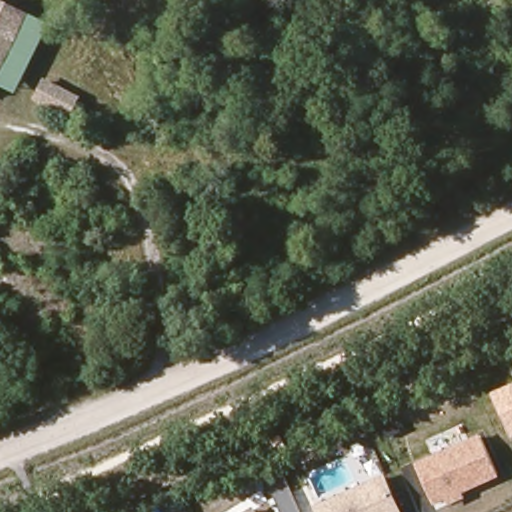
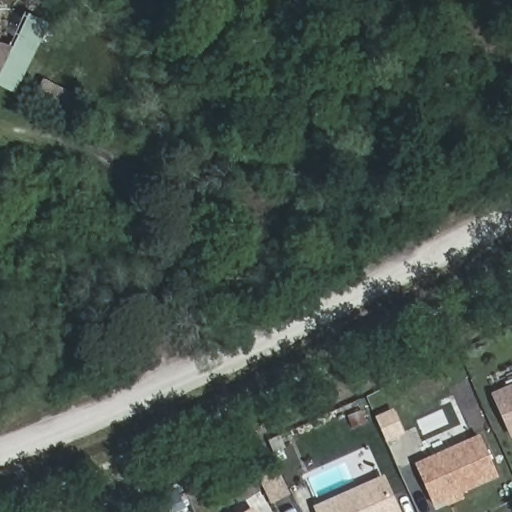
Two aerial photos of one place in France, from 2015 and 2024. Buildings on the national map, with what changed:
unchanged [(19,17),(0,50),(0,6),(19,17)]
unchanged [(19,17),(45,32),(11,84),(0,78),(0,50),(19,17)]
unchanged [(34,102),(45,76),(79,97),(69,117),(34,102)]
unchanged [(512,388),(512,437),(495,395),(512,388)]
unchanged [(461,493),(463,498),(445,505),(445,502),(435,507),(417,462),(481,436),(498,476),(461,493)]
unchanged [(385,474),(402,512),(317,512),(314,505),(385,474)]
unchanged [(258,512),(246,512),(255,507),(258,512)]

